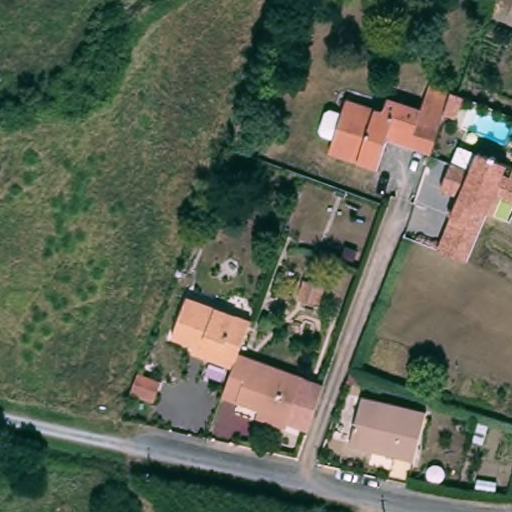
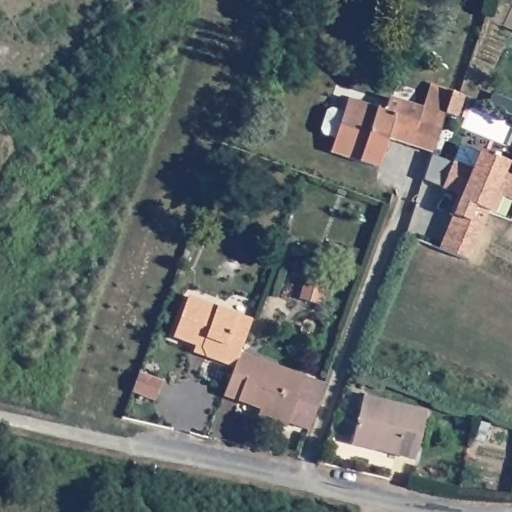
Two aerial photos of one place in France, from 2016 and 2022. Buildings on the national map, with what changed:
unchanged [(436,153),(415,146),(393,139),(383,169),(346,158),(335,154),(340,140),(328,137),(326,133),(333,111),(337,109),(348,112),(352,99),(389,111),(393,98),(426,108),(435,83),(457,91),(450,115),(445,126),(445,129),(437,151),(436,153)]
unchanged [(472,165),(475,153),(507,165),(504,173),(510,178),(512,172),(512,220),(510,224),(486,216),(467,261),(439,249),(459,195),(443,191),(453,165),(472,165)]
unchanged [(320,307),(300,301),(306,284),(325,291),(320,307)]
unchanged [(196,347),(173,338),(188,297),(251,320),(240,353),(234,368),(205,358),(194,353),(196,347)]
unchanged [(257,418),(258,415),(260,411),(239,403),(223,397),(234,368),(240,353),(305,377),(305,380),(324,387),(318,403),(315,413),(308,431),(288,424),(287,425),(286,429),(257,418)]
unchanged [(155,400),(132,392),(139,373),(162,382),(155,400)]
unchanged [(355,444),(368,396),(432,412),(420,460),(400,456),(378,450),(355,444)]

